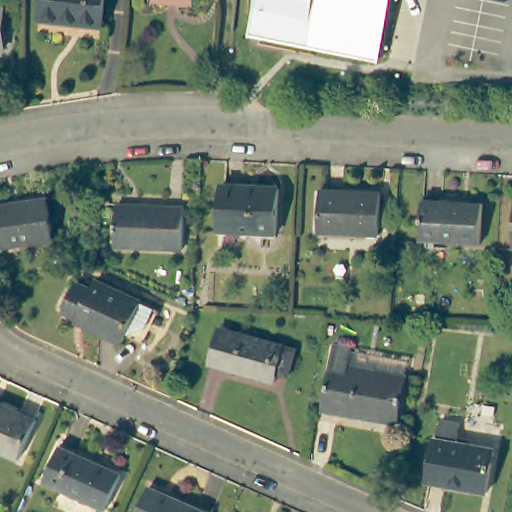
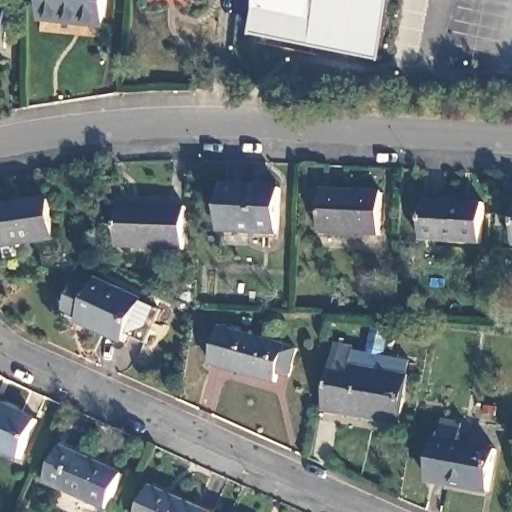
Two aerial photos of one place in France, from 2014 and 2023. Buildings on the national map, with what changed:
unchanged [(38,20),(41,0),(104,0),(100,27),(38,20)]
unchanged [(380,64),(249,38),(257,0),(394,0),(380,64)]
unchanged [(5,15),(2,54),(0,54),(0,15),(5,15)]
unchanged [(277,194),(275,238),(217,236),(218,192),(277,194)]
unchanged [(381,199),(380,239),(318,238),(320,197),(381,199)]
unchanged [(479,204),(478,243),(418,241),(420,201),(479,204)]
unchanged [(45,202),(50,242),(0,249),(0,209),(45,202)]
unchanged [(182,209),(181,252),(113,248),(114,208),(182,209)]
unchanged [(512,215),(512,247),(510,246),(512,215)]
unchanged [(76,280),(91,287),(95,278),(158,307),(143,339),(125,331),(121,338),(95,325),(97,322),(63,306),(76,280)]
unchanged [(277,375),(275,384),(211,365),(224,327),(299,350),(294,367),(290,378),(277,375)]
unchanged [(358,416),(318,410),(329,344),(344,346),(342,366),(398,372),(390,417),(389,421),(358,416)]
unchanged [(34,425),(16,464),(0,456),(0,410),(34,425)]
unchanged [(457,426),(454,446),(492,452),(484,494),(426,484),(437,423),(457,426)]
unchanged [(57,455),(118,480),(104,512),(102,512),(43,488),(57,455)]
unchanged [(191,512),(140,512),(148,494),(191,512)]

